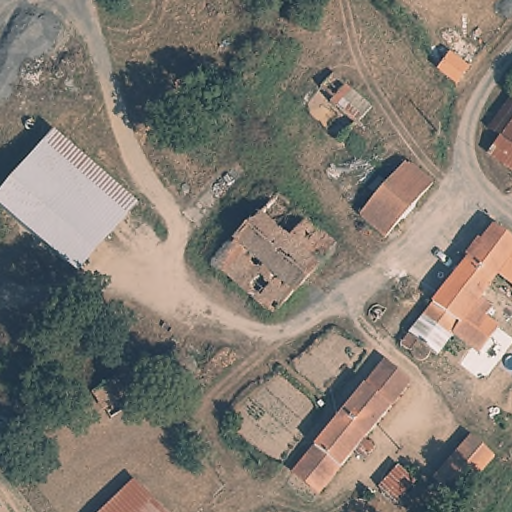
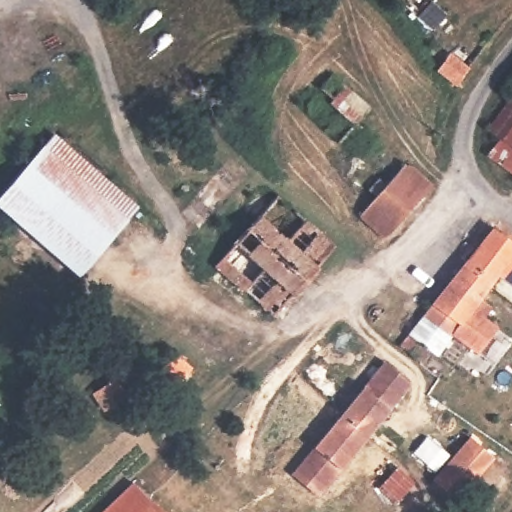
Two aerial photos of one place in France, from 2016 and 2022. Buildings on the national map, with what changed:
unchanged [(444,53),(455,42),(473,58),(462,70),(444,53)]
unchanged [(320,82),(324,77),(319,72),(330,60),(376,96),(364,113),(361,114),(320,82)]
unchanged [(491,113),(512,87),(512,129),(491,113)]
unchanged [(388,236),(314,173),(361,114),(364,113),(439,175),(388,236)]
unchanged [(0,197),(56,131),(87,158),(143,204),(83,275),(26,228),(0,205),(0,197)]
unchanged [(196,157),(182,146),(195,131),(208,143),(196,157)]
unchanged [(332,242),(275,311),(215,261),(272,194),(288,206),(332,242)]
unchanged [(501,269),(494,277),(465,254),(493,219),(512,233),(512,278),(501,269)]
unchanged [(479,295),(502,314),(474,347),(452,330),(470,307),(442,284),(465,254),(494,277),(479,295)]
unchanged [(429,357),(402,335),(442,284),(470,307),(452,330),(429,357)]
unchanged [(180,371),(161,357),(170,345),(189,360),(180,371)]
unchanged [(325,491),(299,471),(383,359),(407,381),(325,491)]
unchanged [(133,396),(111,405),(104,387),(125,378),(133,396)]
unchanged [(489,455),(455,493),(432,474),(469,433),(489,455)]
unchanged [(96,512),(135,475),(171,512),(96,512)]

